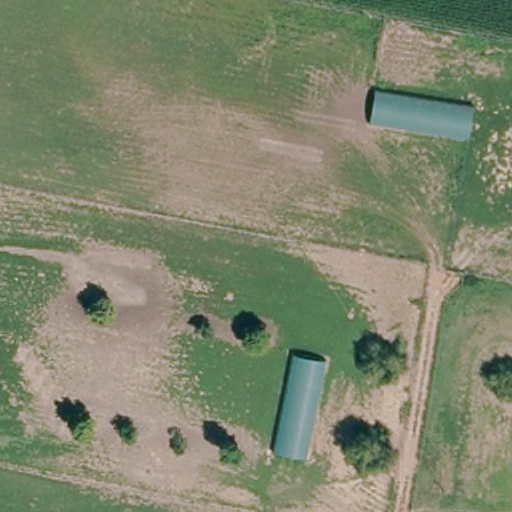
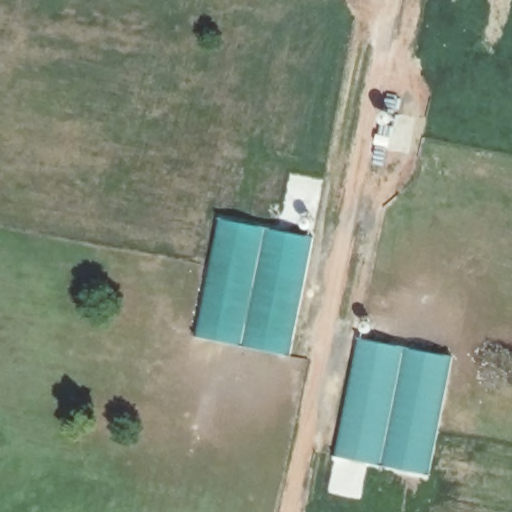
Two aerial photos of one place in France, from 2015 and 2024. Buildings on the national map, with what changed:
new [(197,345),(218,221),(309,233),(291,359),(197,345)]
new [(338,461),(358,336),(451,356),(429,475),(338,461)]
demolished [(321,376),(307,437),(281,431),(287,370),(321,376)]

